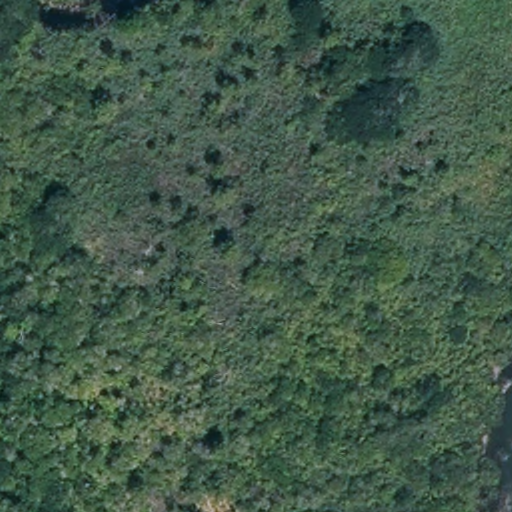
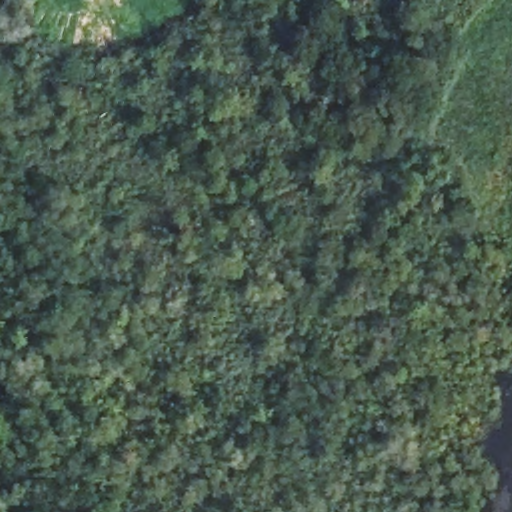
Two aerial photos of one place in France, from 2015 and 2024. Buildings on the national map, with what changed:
[]

